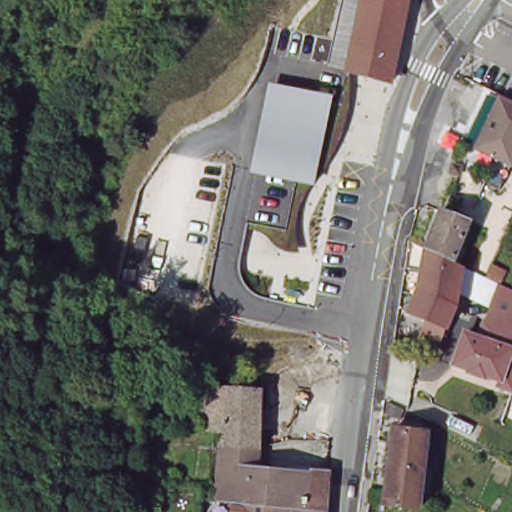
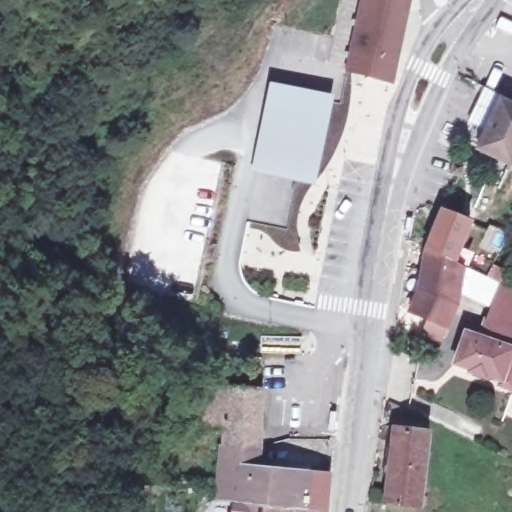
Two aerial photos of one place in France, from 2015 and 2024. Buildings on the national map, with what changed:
unchanged [(351,71),(367,0),(409,0),(393,82),(351,71)]
unchanged [(333,96),(314,185),(251,173),(269,82),(333,96)]
unchanged [(512,161),(502,184),(487,177),(496,155),(478,146),(501,96),(512,101),(512,161)]
unchanged [(454,167),(463,170),(459,178),(451,175),(454,167)]
unchanged [(443,209),(472,222),(455,263),(427,251),(443,209)]
unchanged [(434,342),(422,333),(430,320),(409,313),(422,288),(427,251),(455,263),(463,266),(471,270),(489,278),(494,266),(509,272),(503,284),(504,285),(512,288),(512,366),(499,359),(464,342),(468,334),(479,338),(487,319),(502,284),(491,279),(488,284),(484,282),(479,291),(464,285),(458,305),(445,325),(441,331),(434,341),(434,342)]
unchanged [(498,385),(500,380),(486,375),(484,377),(471,372),(472,369),(455,362),(464,342),(499,359),(512,366),(512,389),(512,390),(498,385)]
unchanged [(236,445),(228,444),(228,429),(218,428),(206,427),(208,384),(269,388),(264,446),(236,445)]
unchanged [(396,405),(399,407),(403,409),(399,421),(385,417),(389,402),(396,405)]
unchanged [(429,433),(419,509),(386,506),(394,430),(429,433)]
unchanged [(233,501),(232,501),(226,501),(228,481),(225,480),(228,444),(236,445),(264,446),(263,467),(316,474),(334,477),(331,511),(331,512),(238,512),(239,502),(233,501)]
unchanged [(161,468),(161,485),(146,484),(146,478),(148,468),(161,468)]

